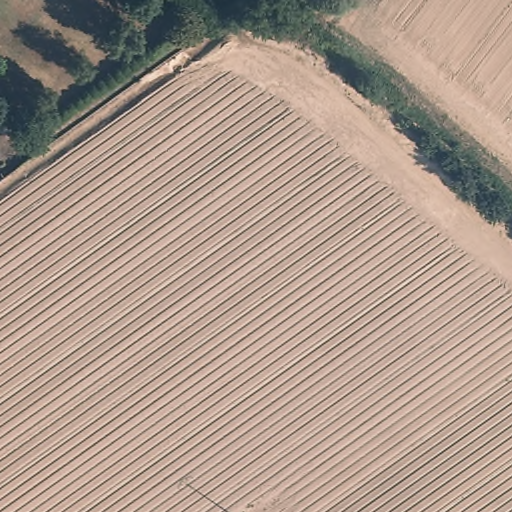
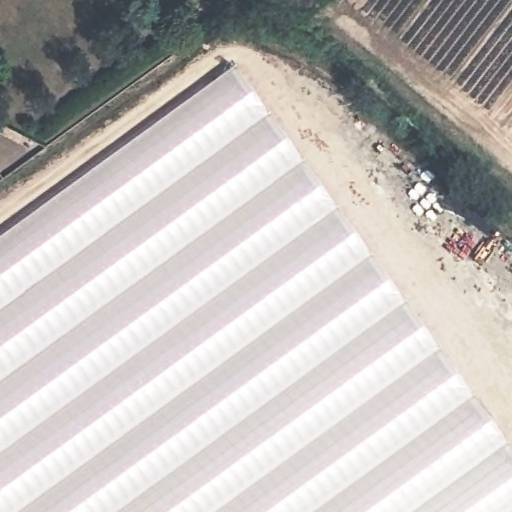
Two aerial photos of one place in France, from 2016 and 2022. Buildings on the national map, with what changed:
new [(512,453),(512,512),(0,512),(0,242),(235,71),(512,453)]

